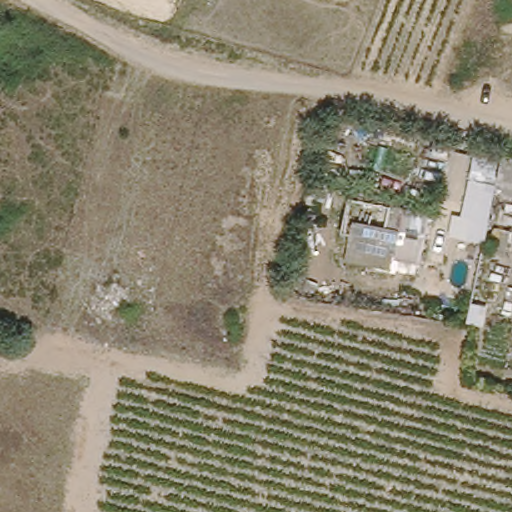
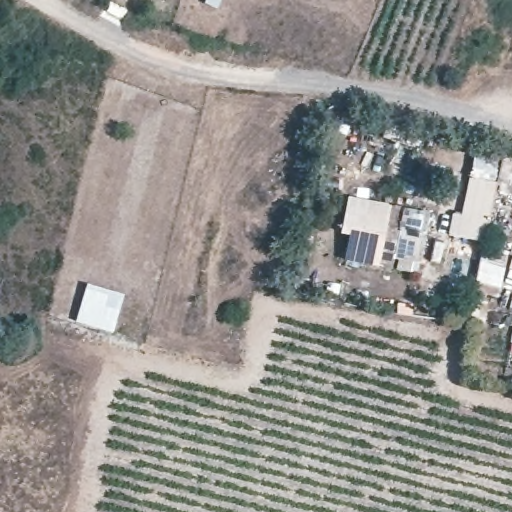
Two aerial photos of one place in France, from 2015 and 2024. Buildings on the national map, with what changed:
unchanged [(447,235),(452,212),(461,214),(476,150),(512,158),(512,196),(495,193),(485,242),(447,235)]
unchanged [(351,223),(373,227),(378,205),(403,209),(401,233),(413,237),(410,261),(395,260),(393,276),(348,267),(351,223)]
new [(88,285),(124,296),(113,333),(77,323),(88,285)]

